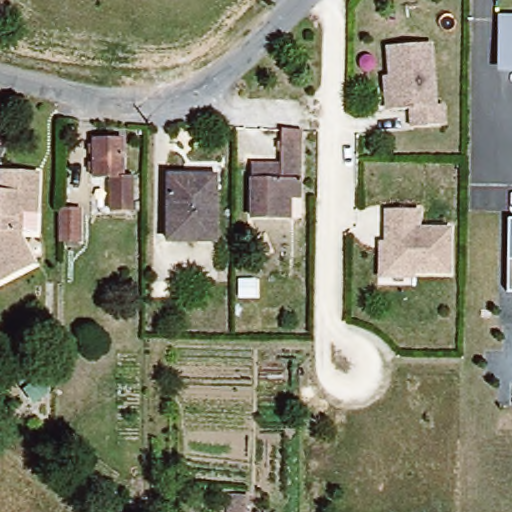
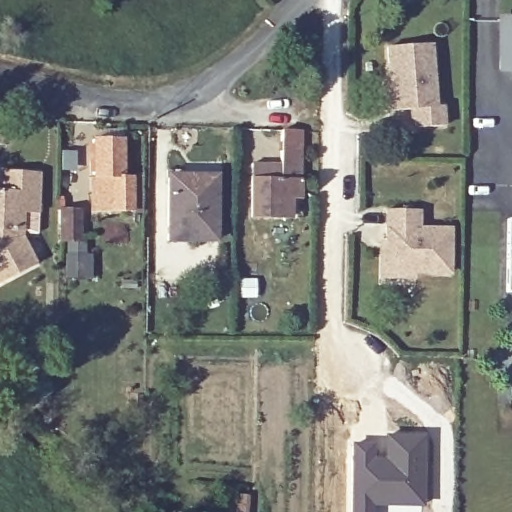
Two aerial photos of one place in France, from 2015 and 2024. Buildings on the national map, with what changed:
unchanged [(380,76),(385,75),(383,44),(427,41),(430,102),(438,102),(439,122),(408,123),(407,105),(387,106),(381,106),(380,76)]
unchanged [(299,241),(286,241),(286,219),(250,218),(250,164),(279,165),(280,131),(299,132),(299,241)]
unchanged [(120,176),(131,176),(130,207),(112,206),(113,176),(91,176),(92,140),(121,140),(120,176)]
unchanged [(28,260),(0,283),(0,282),(0,172),(31,171),(31,212),(30,232),(14,232),(14,244),(28,260)]
unchanged [(212,241),(167,240),(169,176),(191,176),(191,184),(214,184),(212,241)]
unchanged [(79,239),(59,239),(59,209),(79,209),(79,239)]
unchanged [(377,282),(377,249),(382,250),(382,215),(414,215),(414,234),(446,234),(445,277),(407,277),(406,282),(377,282)]
unchanged [(509,221),(512,221),(512,294),(508,294),(509,221)]
new [(385,436),(385,433),(427,432),(425,506),(373,508),(373,512),(350,512),(350,441),(385,436)]

